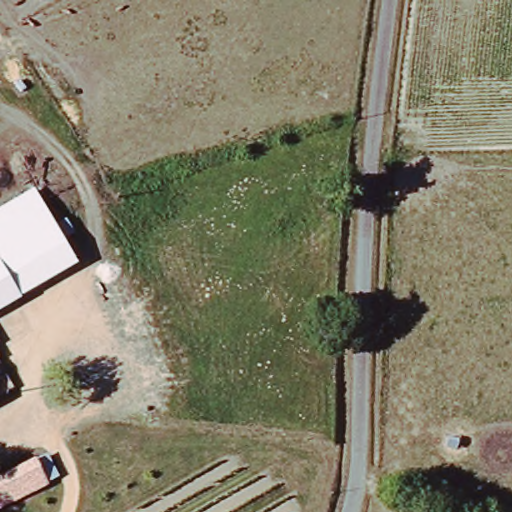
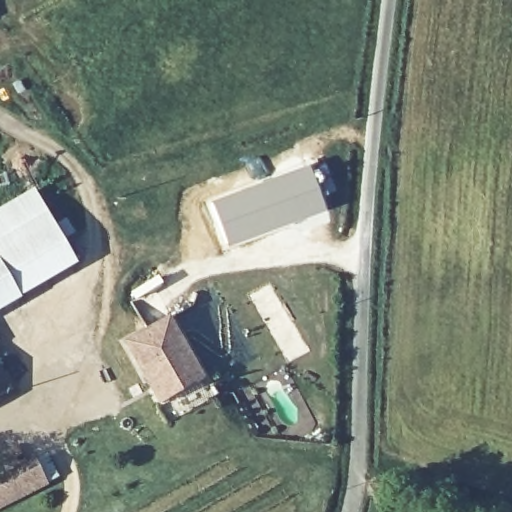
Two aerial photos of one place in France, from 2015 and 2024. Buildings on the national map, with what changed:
new [(306,162),(325,210),(226,248),(208,200),(306,162)]
unchanged [(51,236),(0,266),(0,208),(26,193),(51,236)]
unchanged [(15,305),(0,278),(0,266),(51,236),(71,271),(15,305)]
unchanged [(0,278),(15,305),(0,314),(0,278)]
new [(212,382),(170,407),(135,347),(176,322),(212,382)]
unchanged [(0,397),(0,379),(8,392),(0,397)]
unchanged [(0,480),(49,452),(62,476),(7,507),(0,494),(0,480)]

